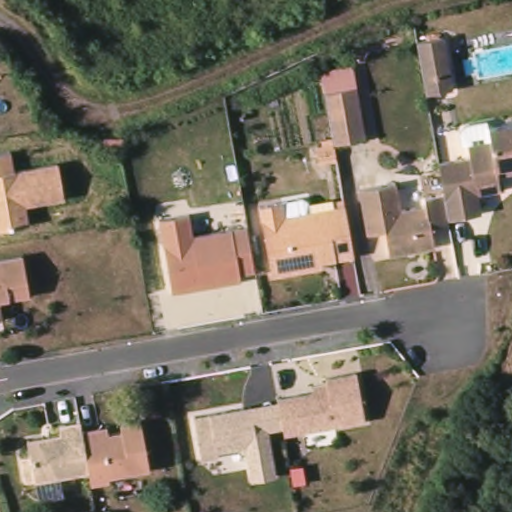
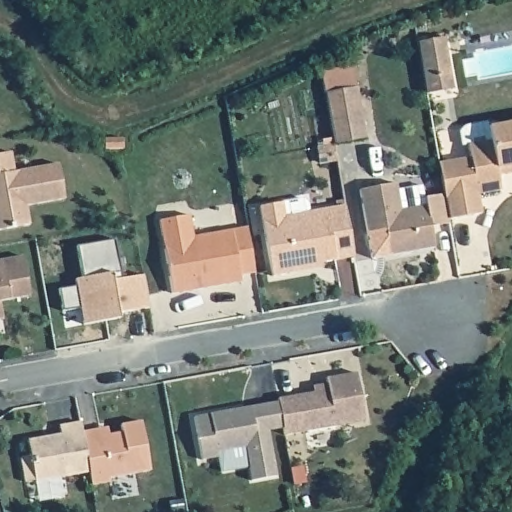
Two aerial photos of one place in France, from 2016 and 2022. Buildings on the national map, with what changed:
unchanged [(449,32),(458,84),(431,89),(428,73),(422,37),(449,32)]
unchanged [(361,87),(369,138),(338,144),(329,92),(361,87)]
unchanged [(502,171),(504,186),(482,189),(486,209),(453,214),(453,211),(449,189),(443,158),(474,152),(473,140),(495,136),(493,122),(512,119),(512,169),(502,171)]
unchanged [(128,134),(128,144),(109,144),(109,134),(128,134)]
unchanged [(63,162),(69,197),(30,205),(34,224),(0,230),(0,154),(14,151),(19,171),(63,162)]
unchanged [(453,211),(453,214),(453,215),(454,219),(435,222),(439,242),(394,251),(389,226),(372,229),(364,185),(400,178),(405,205),(430,201),(429,192),(449,189),(453,211)]
unchanged [(299,267),(277,271),(264,202),(287,197),(289,211),(349,201),(354,227),(358,252),(325,257),(327,262),(299,267)]
unchanged [(193,210),(197,232),(251,222),(259,267),(244,270),(245,277),(177,289),(164,216),(193,210)]
new [(110,316),(88,320),(85,303),(68,307),(63,284),(81,281),(80,275),(86,273),(80,241),(119,234),(126,274),(148,270),(154,303),(123,308),(124,313),(110,316)]
unchanged [(4,297),(6,315),(0,316),(0,256),(27,251),(34,291),(4,297)]
unchanged [(317,382),(331,379),(330,373),(361,367),(369,417),(288,430),(282,393),(318,387),(317,382)]
unchanged [(272,425),(280,471),(256,476),(250,442),(222,447),(223,452),(206,455),(198,412),(248,402),(254,402),(255,406),(259,427),(272,425)]
unchanged [(124,420),(144,416),(154,465),(113,472),(113,477),(95,480),(93,467),(86,427),(103,424),(110,422),(111,430),(125,427),(124,420)]
unchanged [(86,427),(93,467),(39,477),(39,476),(29,477),(24,452),(34,451),(31,436),(65,430),(64,421),(84,417),(86,427)]

